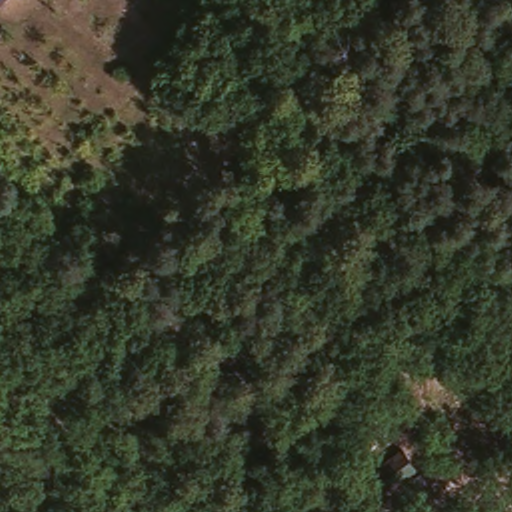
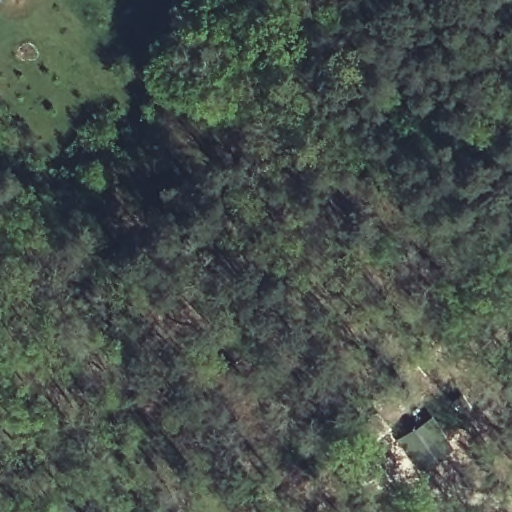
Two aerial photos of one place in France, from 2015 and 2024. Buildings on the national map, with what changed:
unchanged [(3,1),(2,0),(4,0),(3,1)]
new [(432,418),(454,452),(420,474),(398,440),(415,429),(432,418)]

